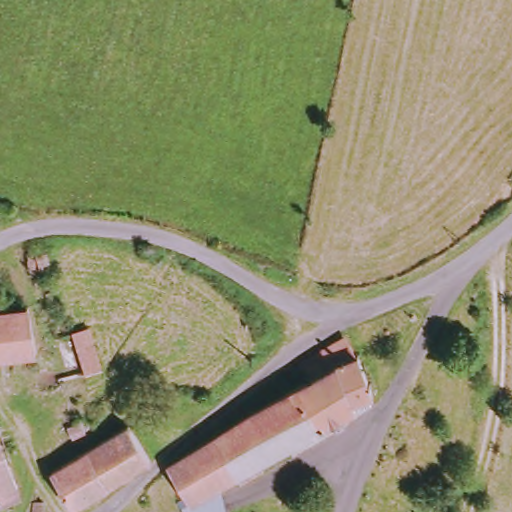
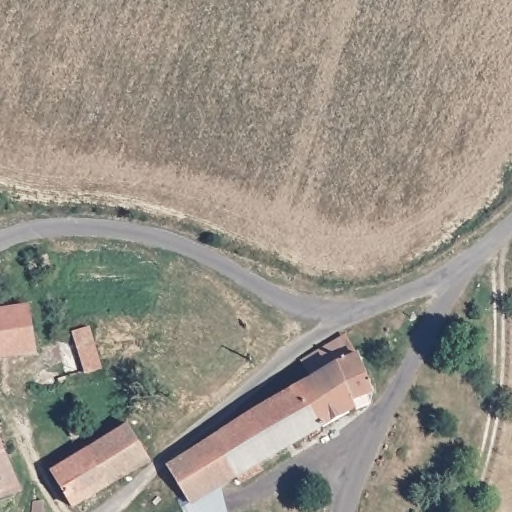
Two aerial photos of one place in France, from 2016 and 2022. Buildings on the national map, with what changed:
unchanged [(3,310),(0,310),(0,286),(3,310)]
unchanged [(3,310),(36,303),(42,354),(0,360),(0,310),(3,310)]
unchanged [(250,479),(246,472),(224,485),(189,507),(185,500),(192,495),(173,470),(180,463),(317,377),(307,362),(333,346),(343,363),(363,357),(379,397),(266,461),(269,468),(250,479)]
unchanged [(135,424),(155,458),(78,507),(57,473),(135,424)]
unchanged [(14,460),(0,465),(0,425),(14,460)]
unchanged [(14,460),(28,495),(0,503),(0,465),(14,460)]
unchanged [(224,485),(233,512),(191,512),(189,507),(224,485)]
unchanged [(46,501),(44,512),(34,512),(36,499),(46,501)]

